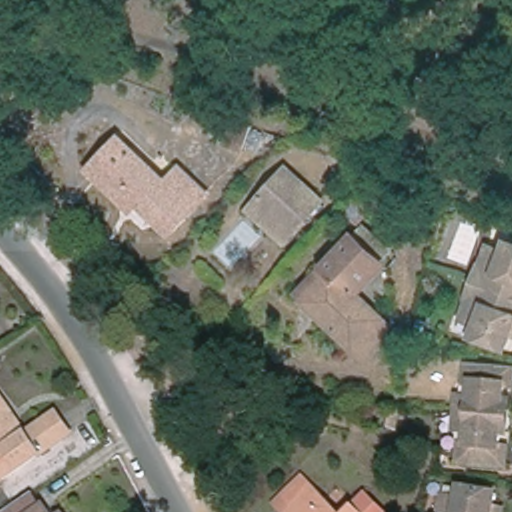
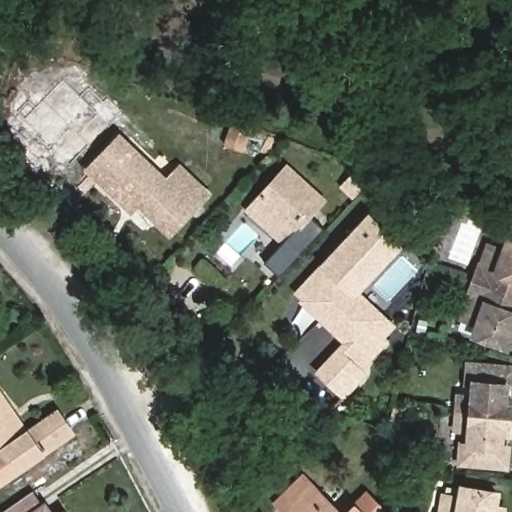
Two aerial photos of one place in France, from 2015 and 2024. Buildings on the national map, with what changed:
unchanged [(113,190),(89,167),(121,134),(166,177),(181,163),(209,190),(170,230),(138,199),(130,207),(113,190)]
unchanged [(283,172),(319,205),(288,238),(253,206),(283,172)]
unchanged [(401,242),(355,290),(391,323),(382,332),(386,336),(368,356),(306,298),(298,292),(324,263),(370,216),(401,242)]
unchanged [(475,277),(476,275),(481,262),(482,262),(489,242),(505,247),(509,237),(512,238),(512,291),(475,277)]
unchanged [(508,343),(475,331),(479,321),(463,315),(470,295),(469,294),(475,277),(512,291),(512,330),(508,343)]
new [(368,356),(373,361),(365,370),(369,374),(344,400),(315,372),(348,337),(368,356)]
unchanged [(456,410),(457,405),(457,395),(472,396),(473,382),(466,381),(467,362),(512,365),(512,385),(500,383),(499,402),(511,403),(510,410),(510,413),(456,410)]
unchanged [(51,411),(66,430),(0,475),(0,400),(21,431),(51,411)]
unchanged [(509,423),(497,423),(496,441),(508,442),(507,461),(485,460),(460,457),(460,452),(461,438),(468,439),(470,425),(455,423),(456,410),(510,413),(509,423)]
unchanged [(288,512),(284,507),(288,502),(309,482),(339,512),(288,512)]
unchanged [(54,512),(5,512),(38,489),(54,512)]
unchanged [(385,512),(340,512),(363,490),(385,512)]
unchanged [(70,512),(66,512),(69,511),(70,512)]

